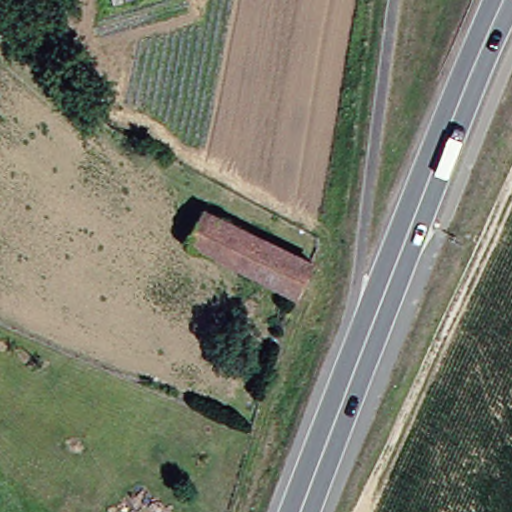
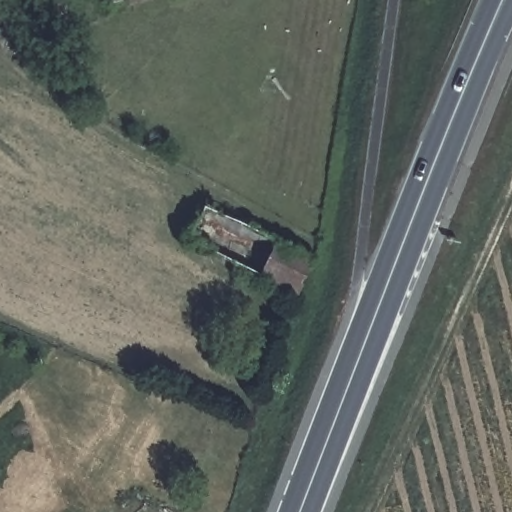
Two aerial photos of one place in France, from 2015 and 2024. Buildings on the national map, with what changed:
unchanged [(180,241),(196,209),(305,263),(289,295),(180,241)]

